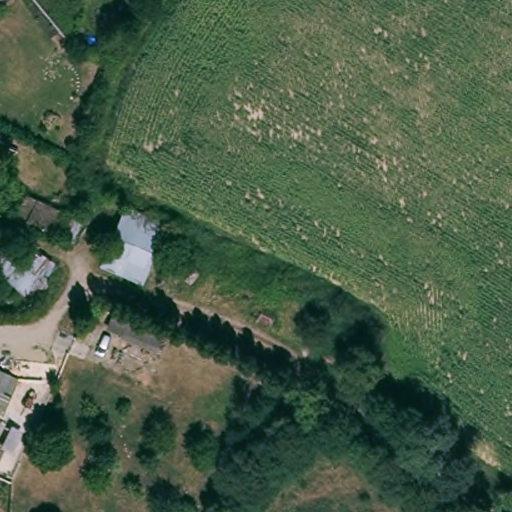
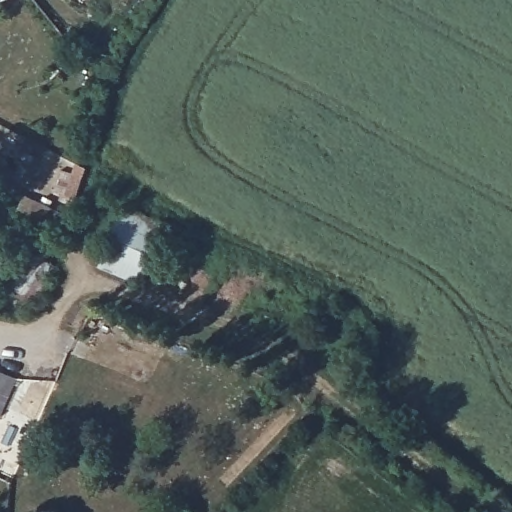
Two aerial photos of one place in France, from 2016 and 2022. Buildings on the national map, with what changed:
unchanged [(20,223),(30,198),(79,224),(70,249),(20,223)]
unchanged [(101,269),(129,210),(148,219),(165,226),(144,270),(129,262),(120,280),(101,269)]
unchanged [(35,306),(0,281),(0,241),(26,261),(33,251),(61,269),(35,306)]
unchanged [(21,379),(6,417),(0,415),(0,371),(21,379)]

